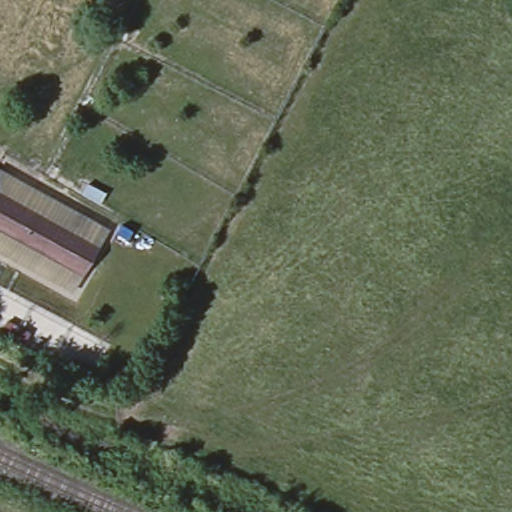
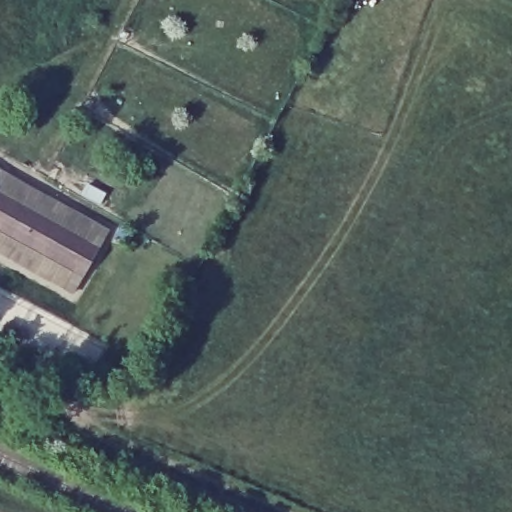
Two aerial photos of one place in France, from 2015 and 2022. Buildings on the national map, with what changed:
unchanged [(20,229),(0,217),(0,183),(34,202),(20,229)]
unchanged [(100,238),(85,265),(20,229),(34,202),(100,238)]

